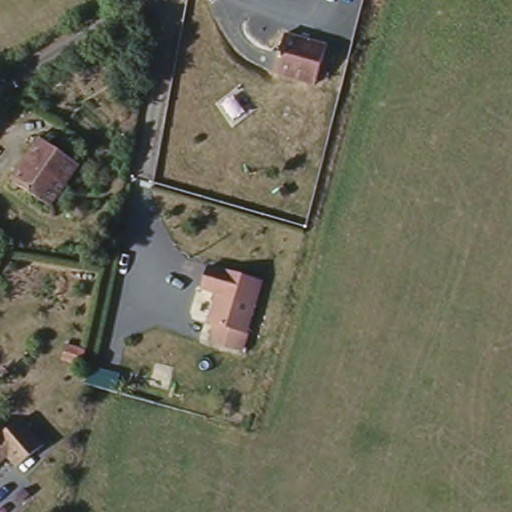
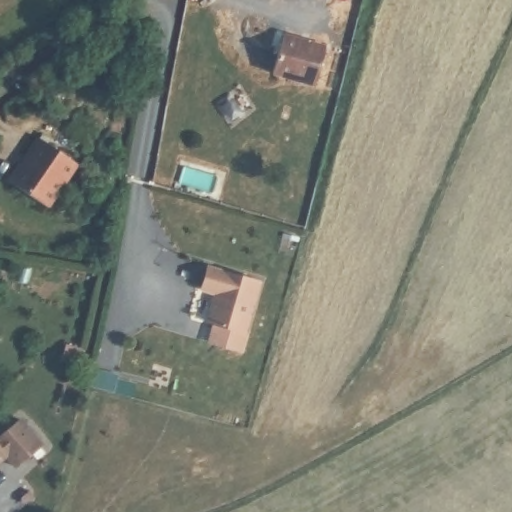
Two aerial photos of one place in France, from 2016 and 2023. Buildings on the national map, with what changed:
unchanged [(325,42),(317,84),(274,73),(285,33),(325,42)]
unchanged [(84,166),(54,208),(15,180),(46,138),(84,166)]
unchanged [(221,317),(214,315),(222,287),(207,282),(213,260),(265,275),(245,343),(215,334),(221,317)]
unchanged [(19,414),(42,443),(15,466),(5,453),(0,457),(0,429),(19,414)]

